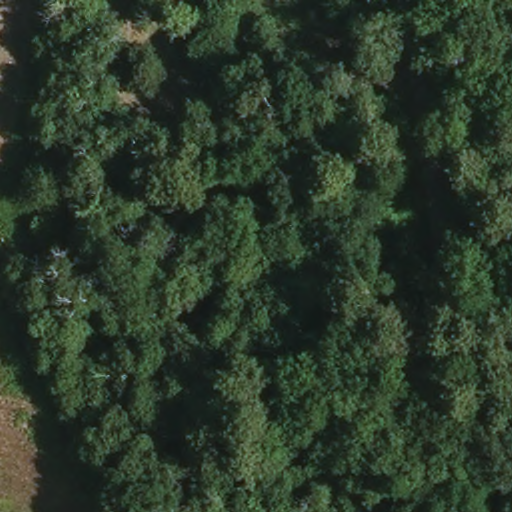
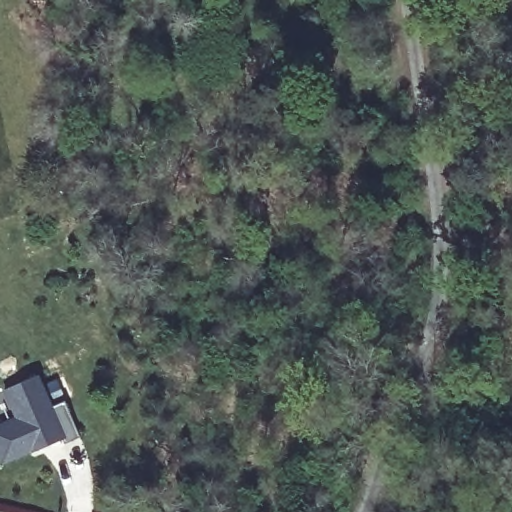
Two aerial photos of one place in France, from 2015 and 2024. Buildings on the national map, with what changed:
new [(49,407),(65,400),(81,437),(65,444),(62,439),(2,462),(0,458),(0,427),(17,420),(3,390),(36,377),(49,407)]

